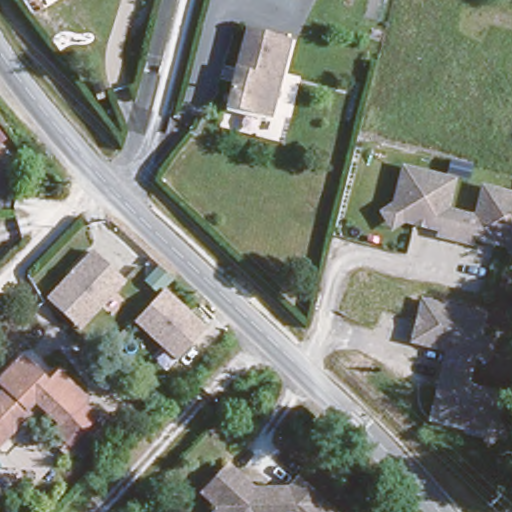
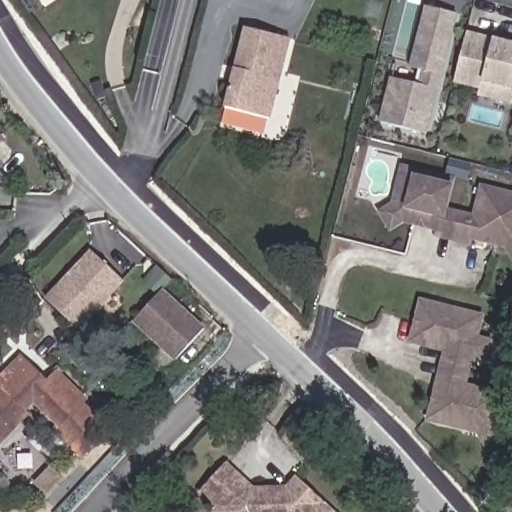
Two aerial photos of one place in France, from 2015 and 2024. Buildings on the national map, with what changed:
new [(380,121),(391,76),(419,83),(422,71),(410,68),(426,6),(458,14),(429,134),(380,121)]
unchanged [(271,119),(224,106),(245,27),(291,39),(271,119)]
new [(477,96),(479,90),(454,84),(467,31),(494,39),(512,43),(512,102),(512,105),(477,96)]
unchanged [(509,247),(498,244),(488,241),(474,238),(473,244),(457,240),(440,235),(442,230),(428,226),(418,223),(406,220),(393,228),(384,211),(396,203),(406,166),(457,179),(449,209),(464,213),(477,216),(485,186),(512,193),(512,251),(509,247)]
unchanged [(79,331),(46,299),(91,250),(124,282),(79,331)]
unchanged [(176,362),(133,322),(163,289),(208,328),(176,362)]
unchanged [(486,336),(497,339),(494,361),(479,361),(474,385),(510,394),(505,423),(511,436),(491,450),(483,439),(428,423),(443,355),(410,346),(421,301),(487,317),(486,336)]
unchanged [(30,390),(21,399),(28,406),(0,436),(0,384),(1,383),(0,382),(0,364),(18,347),(44,373),(54,362),(80,388),(74,394),(94,412),(91,415),(103,427),(80,452),(48,422),(55,414),(30,390)]
unchanged [(205,511),(213,504),(197,488),(224,462),(250,487),(263,478),(272,476),(282,486),(303,464),(346,508),(342,512),(297,512),(294,509),(282,512),(206,512),(205,511)]

